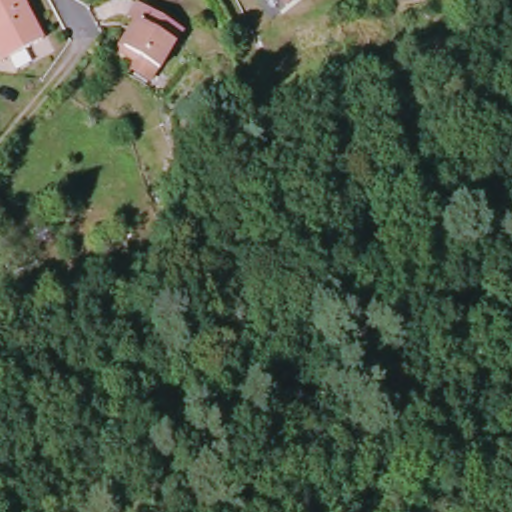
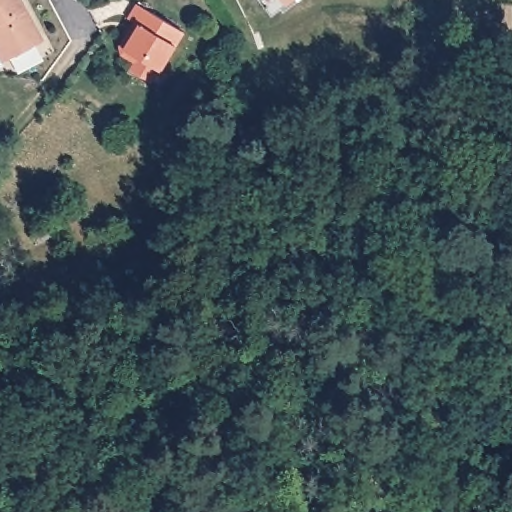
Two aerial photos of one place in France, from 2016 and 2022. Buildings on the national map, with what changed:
unchanged [(0,43),(0,0),(20,0),(43,41),(10,60),(0,43)]
unchanged [(287,7),(281,0),(295,0),(287,7)]
unchanged [(185,30),(153,82),(137,72),(144,59),(127,49),(143,23),(137,20),(132,15),(140,4),(159,15),(185,30)]
unchanged [(135,240),(113,246),(110,237),(130,228),(135,240)]

